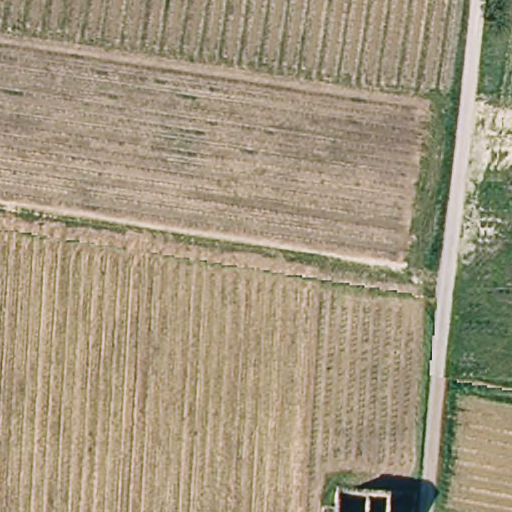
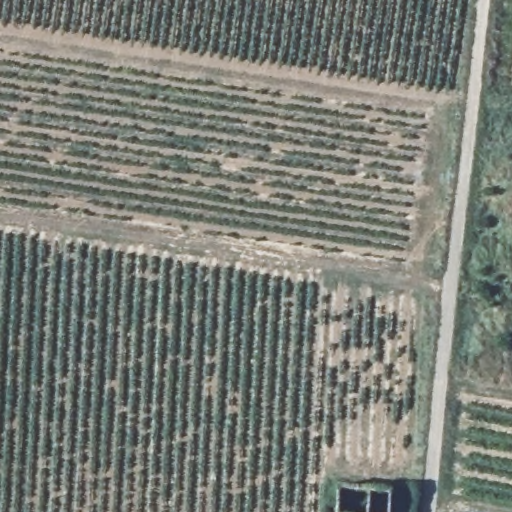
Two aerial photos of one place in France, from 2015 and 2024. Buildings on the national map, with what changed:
unchanged [(396,512),(369,512),(373,488),(397,490),(396,512)]

